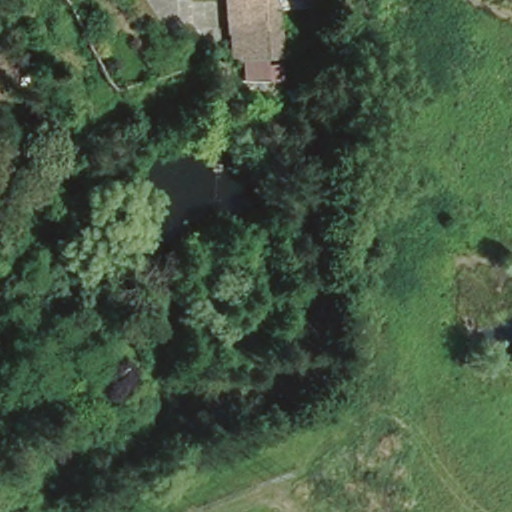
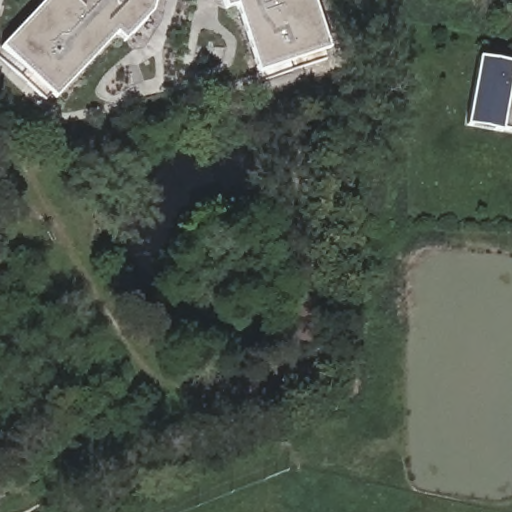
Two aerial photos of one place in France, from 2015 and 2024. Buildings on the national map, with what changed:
new [(152,13),(124,42),(115,35),(55,99),(1,47),(46,0),(157,0),(152,13)]
new [(329,50),(257,75),(235,7),(225,10),(222,0),(312,0),(329,50)]
demolished [(282,61),(268,62),(250,63),(245,0),(275,0),(282,61)]
new [(512,132),(465,123),(476,58),(512,64),(512,132)]

